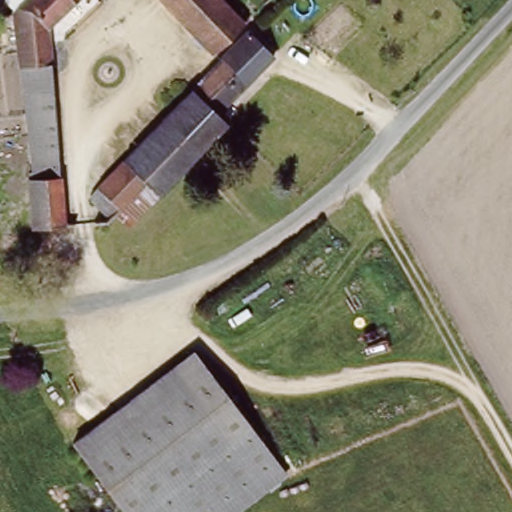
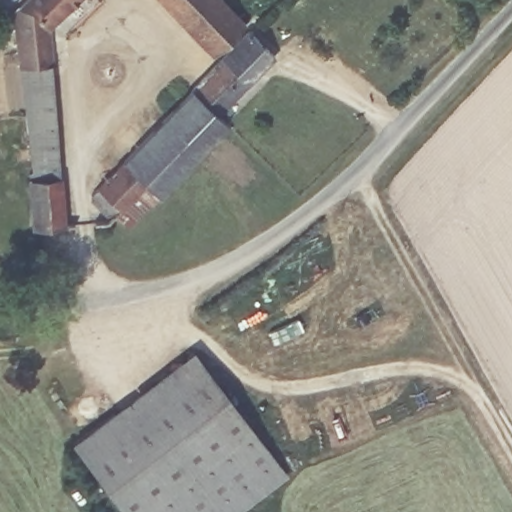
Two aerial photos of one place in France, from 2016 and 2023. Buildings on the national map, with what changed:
unchanged [(30,175),(10,1),(12,0),(62,0),(45,16),(66,225),(30,227),(23,177),(30,175)]
unchanged [(203,48),(155,0),(219,0),(237,19),(203,48)]
unchanged [(269,54),(211,110),(188,85),(244,26),(269,54)]
unchanged [(211,110),(223,123),(158,188),(148,177),(111,212),(89,189),(188,85),(211,110)]
unchanged [(282,478),(236,512),(117,512),(68,441),(193,352),(282,478)]

